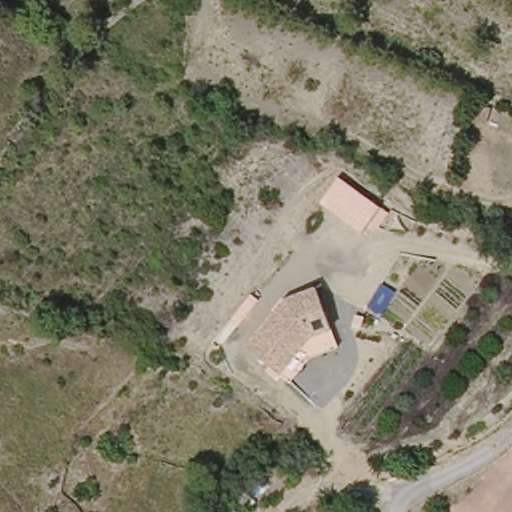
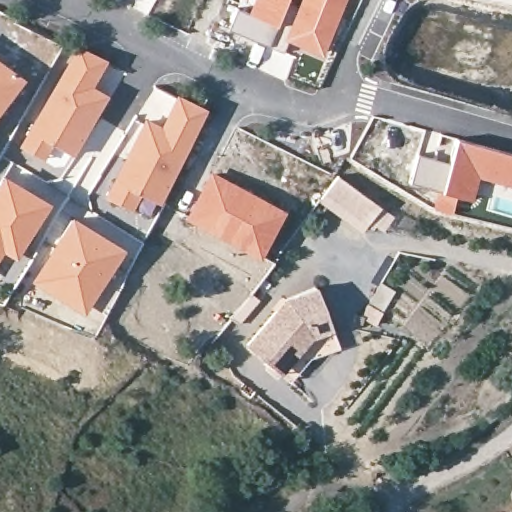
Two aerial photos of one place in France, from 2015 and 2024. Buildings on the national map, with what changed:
new [(234,8),(246,13),(250,0),(286,0),(267,46),(225,29),(234,8)]
new [(298,0),(345,0),(320,56),(282,39),(298,0)]
new [(77,45),(106,61),(92,86),(109,97),(74,157),(53,145),(46,162),(20,147),(77,45)]
new [(24,79),(0,111),(0,62),(24,79)]
new [(144,118),(161,126),(177,94),(206,109),(160,205),(141,196),(134,211),(104,198),(144,118)]
new [(471,199),(410,183),(417,153),(449,162),(456,137),(512,154),(512,187),(478,177),(471,199)]
new [(213,174),(281,213),(256,258),(186,221),(213,174)]
new [(47,204),(0,281),(0,180),(2,177),(47,204)]
unchanged [(338,178),(386,213),(375,231),(366,225),(361,231),(321,202),(338,178)]
new [(84,314),(31,283),(71,217),(124,249),(84,314)]
unchanged [(284,298),(316,286),(331,330),(338,348),(307,359),(290,382),(246,345),(284,298)]

